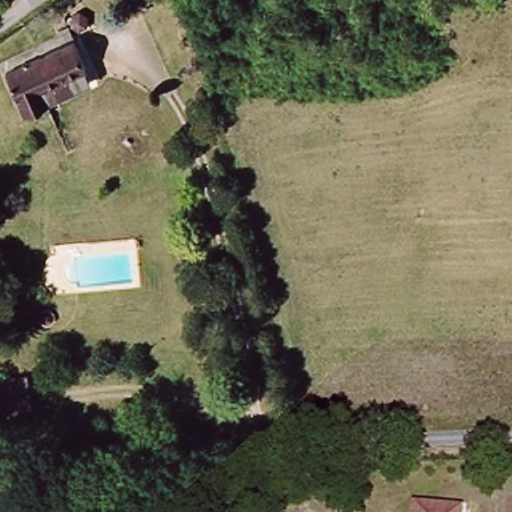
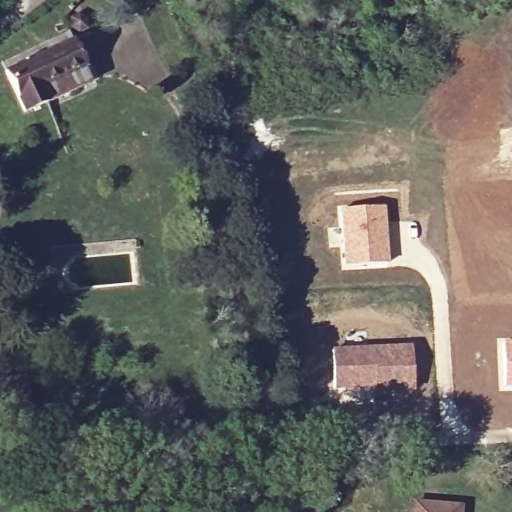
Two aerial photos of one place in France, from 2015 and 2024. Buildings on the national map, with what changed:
unchanged [(23,116),(2,77),(70,40),(83,67),(90,79),(47,104),(23,116)]
new [(385,206),(388,262),(341,267),(339,209),(385,206)]
new [(512,387),(505,388),(502,341),(512,340),(512,387)]
new [(410,346),(413,393),(358,392),(333,394),(330,349),(410,346)]
unchanged [(0,424),(0,379),(29,377),(31,390),(35,418),(0,424)]
unchanged [(411,507),(458,511),(458,512),(411,512),(411,507)]

